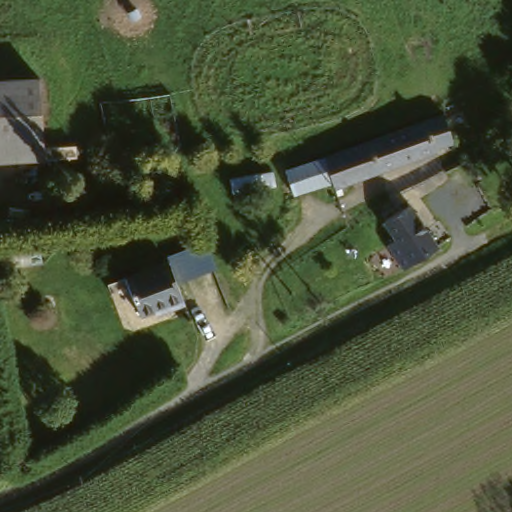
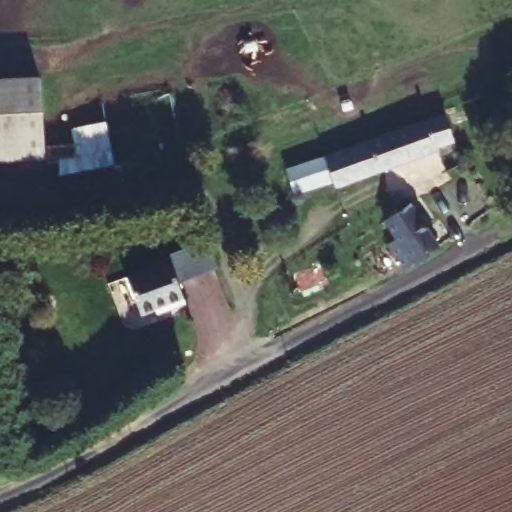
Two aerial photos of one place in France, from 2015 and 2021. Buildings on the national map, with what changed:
unchanged [(45,152),(0,155),(0,90),(41,87),(45,152)]
unchanged [(286,174),(303,168),(324,160),(444,117),(454,145),(437,151),(436,154),(336,191),(332,181),(294,196),(286,174)]
unchanged [(508,146),(512,144),(512,151),(508,146)]
unchanged [(403,275),(402,276),(391,259),(400,253),(381,222),(404,207),(435,254),(403,275)]
unchanged [(166,307),(165,304),(139,311),(125,276),(166,261),(181,301),(166,307)]

